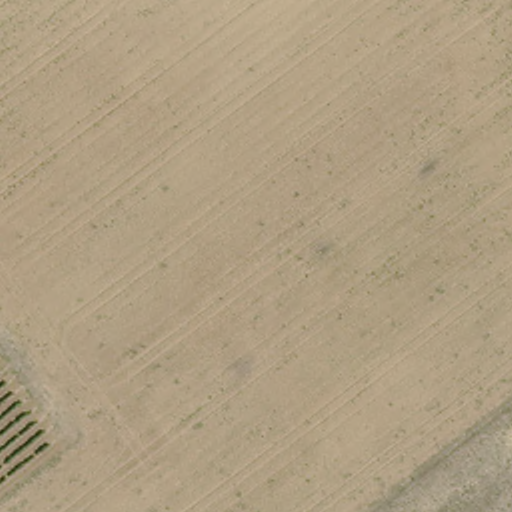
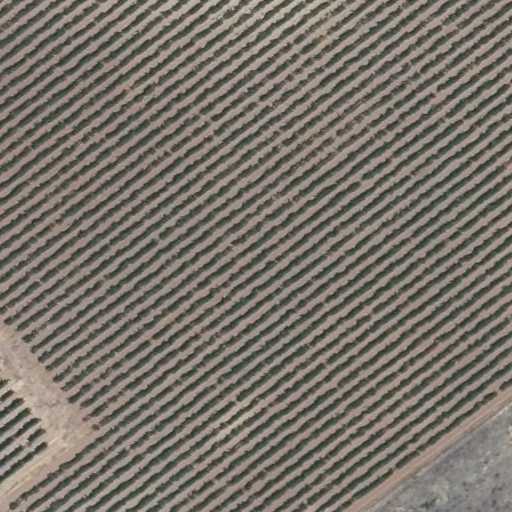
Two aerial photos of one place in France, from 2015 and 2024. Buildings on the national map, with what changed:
[]

